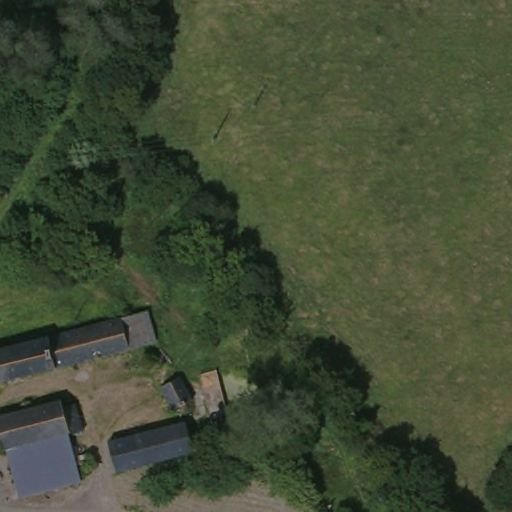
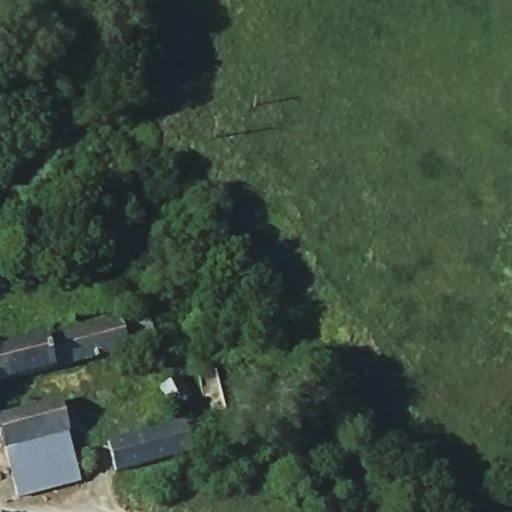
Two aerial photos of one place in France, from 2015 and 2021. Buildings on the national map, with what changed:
unchanged [(0,356),(115,323),(119,334),(144,327),(149,343),(0,384),(0,356)]
unchanged [(187,413),(165,424),(153,403),(175,392),(187,413)]
unchanged [(60,407),(71,404),(79,427),(66,431),(0,451),(0,418),(57,401),(60,407)]
unchanged [(175,461),(114,479),(106,450),(177,432),(180,439),(230,412),(242,427),(221,439),(175,461)]
unchanged [(0,451),(66,431),(77,465),(10,485),(0,453),(0,451)]
unchanged [(10,485),(77,465),(81,481),(15,501),(10,485)]

